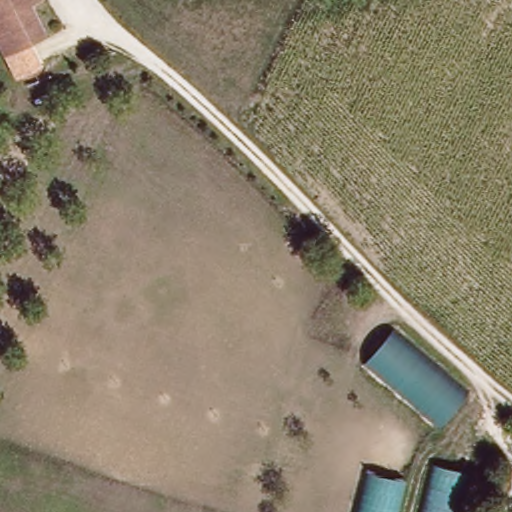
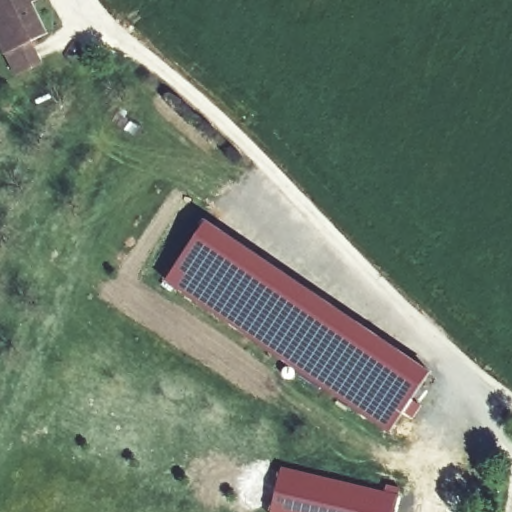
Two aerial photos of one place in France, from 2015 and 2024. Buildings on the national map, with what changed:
unchanged [(37,2),(52,32),(8,54),(0,38),(0,0),(39,0),(37,2)]
unchanged [(8,54),(32,42),(44,65),(20,77),(8,54)]
new [(207,221),(432,372),(390,432),(165,282),(207,221)]
demolished [(365,366),(395,328),(470,392),(442,427),(365,366)]
unchanged [(470,473),(463,512),(423,512),(434,465),(470,473)]
unchanged [(405,480),(398,512),(359,512),(368,473),(405,480)]

